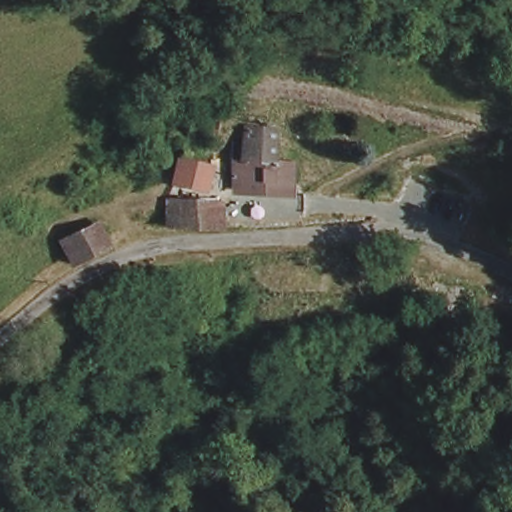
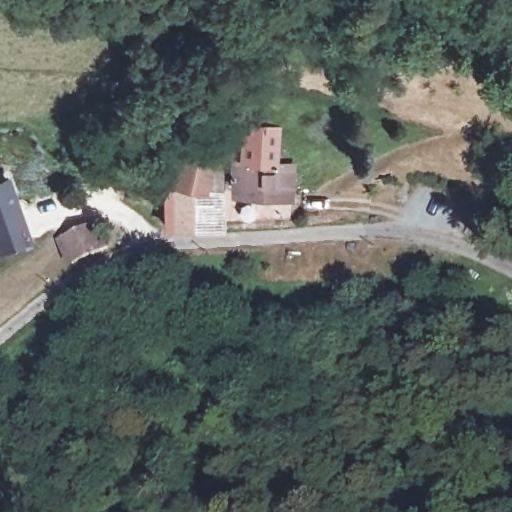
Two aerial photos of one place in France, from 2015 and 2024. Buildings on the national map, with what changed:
unchanged [(235,198),(237,171),(245,172),(249,136),(279,139),(277,175),(294,179),(294,207),(235,198)]
unchanged [(208,190),(173,181),(177,161),(210,166),(208,190)]
new [(0,248),(0,178),(9,174),(32,236),(0,248)]
unchanged [(224,228),(162,224),(164,199),(226,202),(225,207),(225,214),(224,228)]
unchanged [(75,264),(65,249),(82,237),(97,227),(109,244),(112,249),(79,270),(75,264)]

